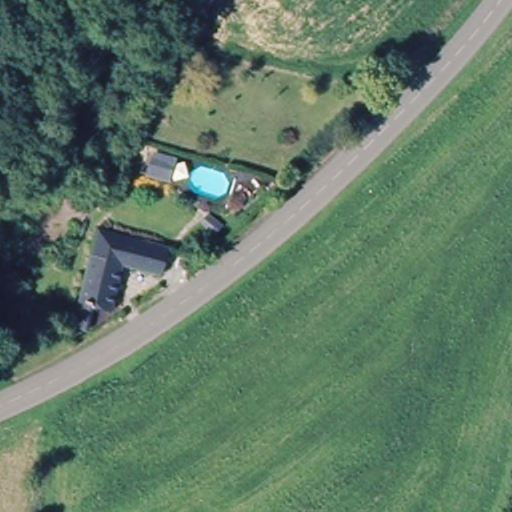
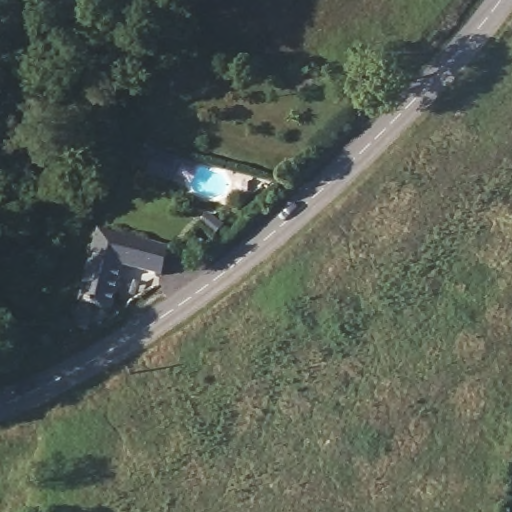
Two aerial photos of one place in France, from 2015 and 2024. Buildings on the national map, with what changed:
unchanged [(98,230),(170,247),(161,272),(123,263),(110,307),(94,303),(85,328),(73,326),(98,230)]

